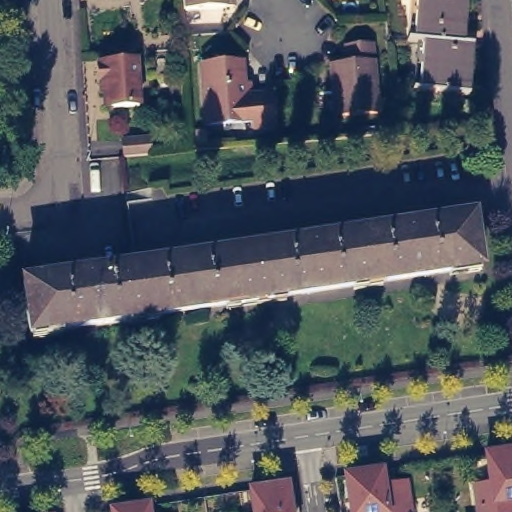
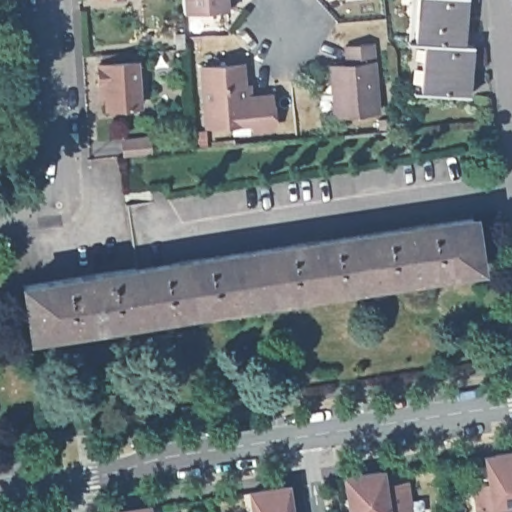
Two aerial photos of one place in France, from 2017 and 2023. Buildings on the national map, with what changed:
unchanged [(231,4),(188,5),(188,0),(238,0),(238,3),(231,4)]
unchanged [(472,0),(469,40),(428,37),(419,36),(421,0),(472,0)]
unchanged [(474,91),(425,88),(428,37),(469,40),(479,40),(474,91)]
unchanged [(355,43),(382,40),(384,58),(388,108),(350,111),(348,83),(343,83),(341,61),(356,60),(355,43)]
unchanged [(134,53),(133,61),(136,61),(139,106),(106,109),(105,86),(99,86),(98,64),(103,64),(102,55),(134,53)]
unchanged [(241,60),(244,94),(271,91),(274,124),(254,125),(253,118),(206,123),(201,64),(241,60)]
unchanged [(191,135),(183,135),(181,120),(190,119),(191,135)]
unchanged [(148,139),(151,155),(124,158),(122,141),(148,139)]
unchanged [(454,185),(133,237),(129,205),(452,155),(454,185)]
unchanged [(477,217),(485,269),(35,335),(28,284),(477,217)]
unchanged [(470,484),(487,483),(483,453),(512,449),(512,512),(473,512),(470,484)]
unchanged [(414,512),(347,512),(341,474),(383,468),(386,484),(410,480),(414,512)]
unchanged [(293,512),(249,512),(246,488),(289,482),(293,512)]
unchanged [(108,509),(149,504),(150,512),(108,512),(108,509)]

